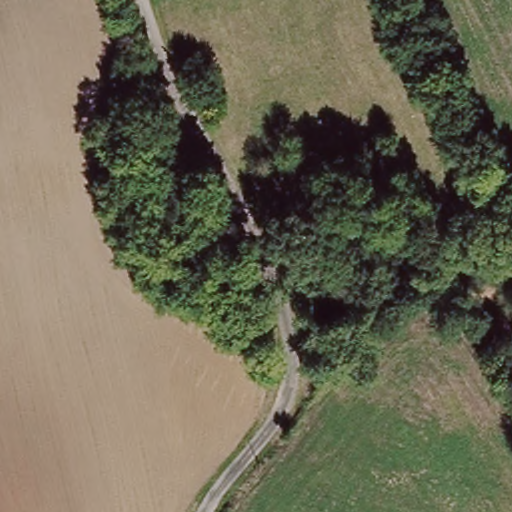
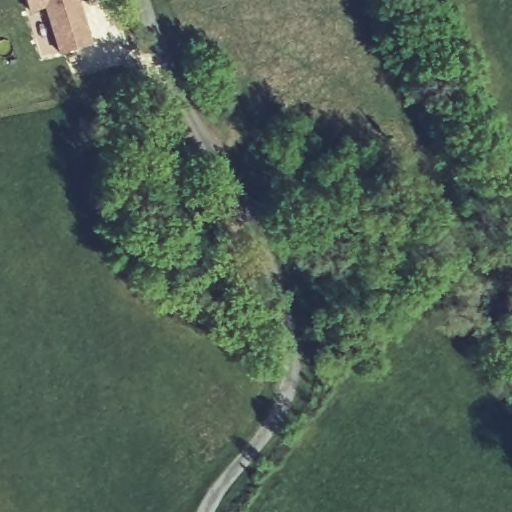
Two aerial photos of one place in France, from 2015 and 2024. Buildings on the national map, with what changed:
new [(30,12),(26,0),(79,0),(92,42),(59,54),(44,7),(30,12)]

